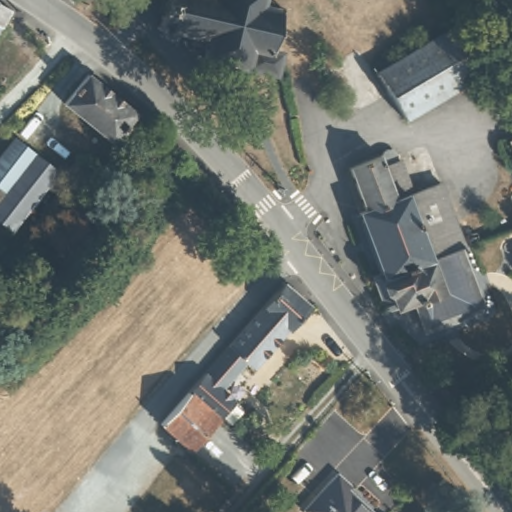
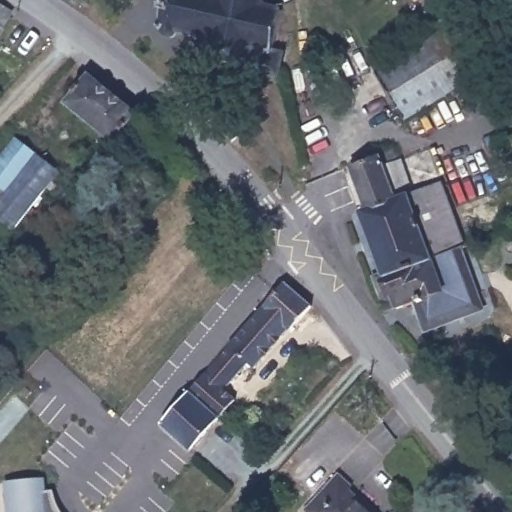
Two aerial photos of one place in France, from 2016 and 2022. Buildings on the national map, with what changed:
unchanged [(1,0),(9,4),(0,16),(0,0),(1,0)]
unchanged [(207,51),(210,31),(173,21),(177,0),(269,0),(269,1),(283,5),(275,46),(283,49),(282,54),(277,67),(207,51)]
unchanged [(396,119),(367,71),(456,19),(485,65),(498,58),(512,80),(512,91),(496,100),(480,70),(396,119)]
unchanged [(113,139),(66,102),(88,75),(139,113),(113,139)]
unchanged [(512,159),(504,135),(512,132),(512,159)]
unchanged [(47,175),(54,180),(51,185),(44,180),(29,202),(35,206),(31,213),(25,210),(13,229),(0,220),(0,144),(6,135),(53,165),(47,175)]
unchanged [(389,147),(393,156),(403,153),(413,179),(435,170),(464,236),(453,241),(475,300),(424,321),(413,292),(395,300),(388,286),(373,291),(365,268),(380,263),(356,207),(368,202),(350,164),(389,147)]
unchanged [(90,168),(83,180),(61,166),(70,155),(90,168)]
unchanged [(288,328),(263,306),(288,280),(309,305),(288,328)]
unchanged [(187,390),(205,372),(263,306),(288,328),(251,367),(244,362),(220,386),(232,397),(215,416),(187,448),(160,422),(187,390)]
unchanged [(376,512),(311,512),(310,511),(340,471),(355,481),(352,485),(374,502),(371,507),(374,510),(376,512)]
new [(47,491),(52,490),(55,502),(61,512),(8,512),(4,481),(46,477),(47,491)]
unchanged [(385,511),(386,512),(384,512),(385,511)]

